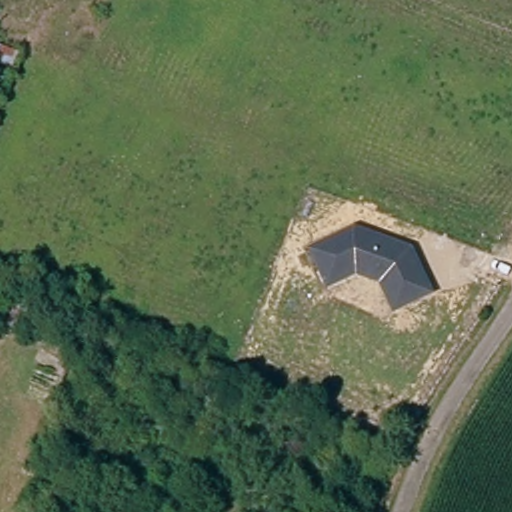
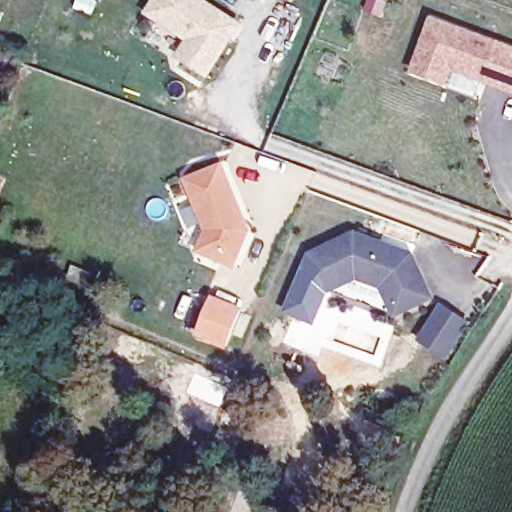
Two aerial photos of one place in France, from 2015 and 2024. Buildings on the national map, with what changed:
new [(243,25),(209,80),(175,61),(186,42),(143,16),(153,0),(206,0),(243,25)]
new [(512,93),(453,72),(448,85),(410,72),(430,17),(512,47),(512,93)]
new [(250,232),(235,270),(195,253),(205,231),(182,180),(223,163),(250,232)]
unchanged [(390,302),(384,288),(358,278),(331,292),(314,256),(357,235),(410,255),(413,256),(420,270),(433,299),(406,312),(397,316),(390,302)]
new [(310,252),(314,256),(331,292),(330,294),(316,326),(285,313),(310,252)]
new [(195,337),(211,296),(244,308),(226,350),(195,337)]
new [(440,306),(465,322),(452,343),(445,356),(419,341),(427,327),(440,306)]

